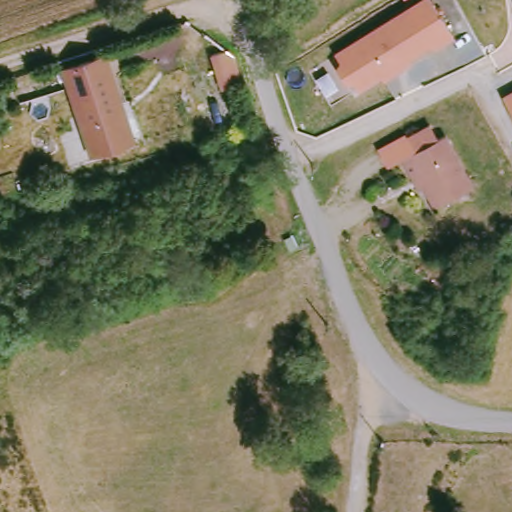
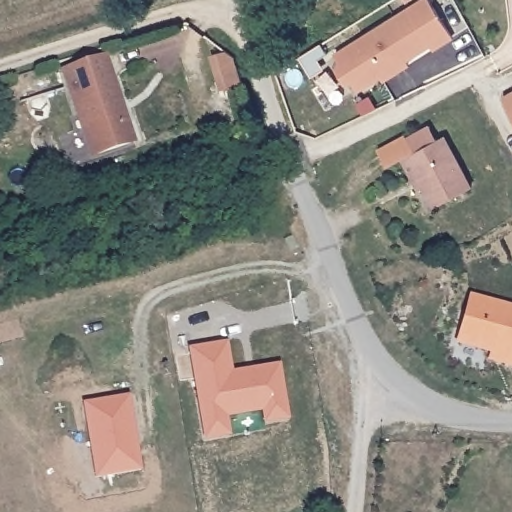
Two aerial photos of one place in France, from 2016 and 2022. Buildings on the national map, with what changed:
unchanged [(352,82),(345,84),(337,70),(341,65),(335,56),(424,0),(429,0),(452,37),(433,50),(431,45),(406,61),(409,65),(390,77),(382,81),(380,77),(357,91),(352,82)]
unchanged [(132,144),(97,156),(68,70),(110,56),(126,104),(138,142),(132,144)]
unchanged [(242,84),(222,90),(217,70),(237,65),(238,70),(242,84)]
unchanged [(502,99),(512,94),(512,116),(502,99)]
unchanged [(407,159),(392,167),(383,151),(410,136),(412,139),(435,126),(442,140),(449,137),(477,188),(441,207),(430,187),(425,190),(407,159)]
new [(504,363),(506,356),(457,342),(470,297),(512,309),(512,366),(504,363)]
new [(229,337),(234,365),(284,356),(295,420),(265,429),(265,408),(231,414),(236,441),(205,440),(188,345),(229,337)]
new [(504,363),(487,359),(490,351),(506,356),(504,363)]
new [(88,398),(135,389),(146,468),(97,478),(88,398)]

